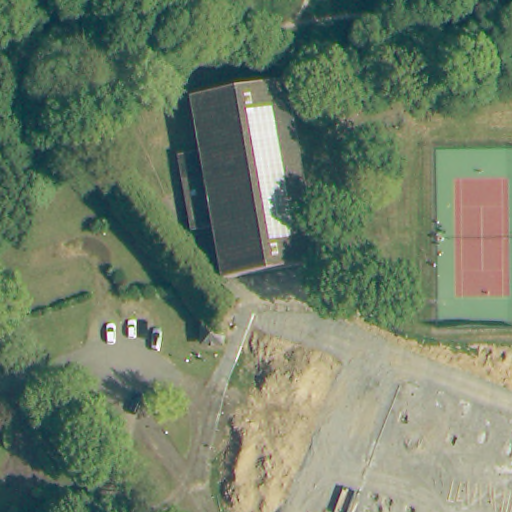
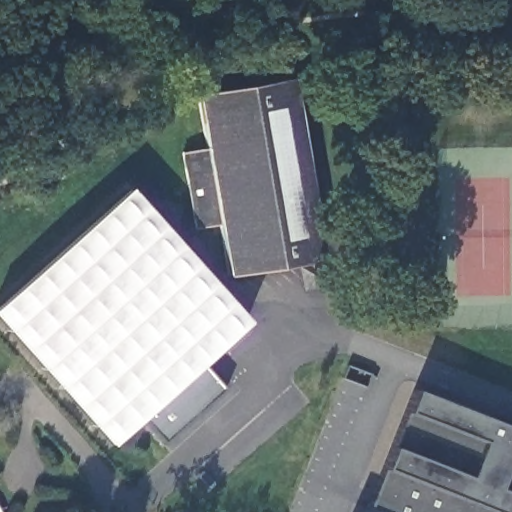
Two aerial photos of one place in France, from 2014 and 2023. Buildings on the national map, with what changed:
unchanged [(210,143),(207,87),(298,81),(308,263),(216,269),(213,216),(190,217),(185,145),(210,143)]
new [(140,418),(109,445),(0,324),(0,300),(126,187),(246,321),(200,363),(140,418)]
demolished [(216,321),(216,338),(199,339),(199,322),(216,321)]
new [(140,418),(200,363),(225,389),(164,443),(140,418)]
new [(412,390),(512,430),(512,512),(368,512),(412,390)]

